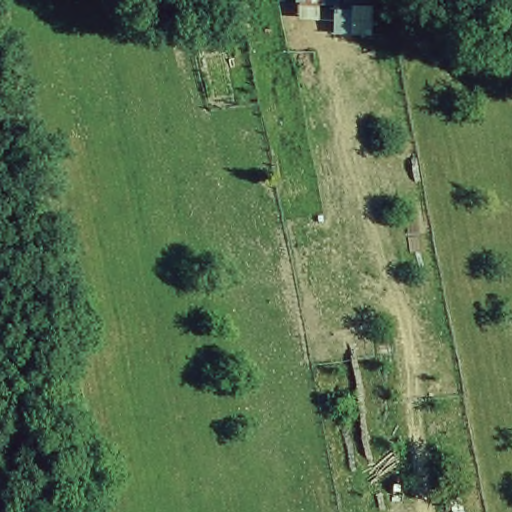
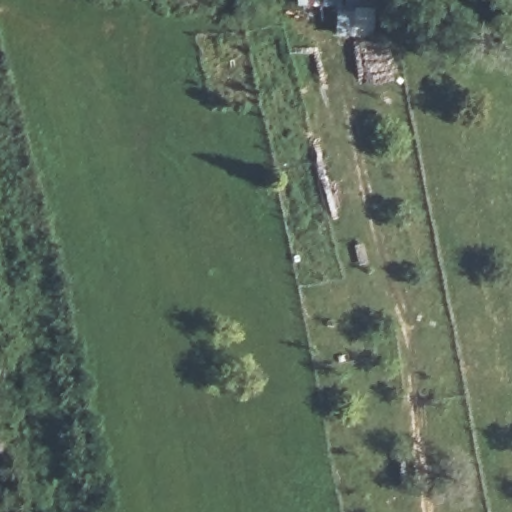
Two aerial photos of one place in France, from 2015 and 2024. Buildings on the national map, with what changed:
unchanged [(320,0),(380,0),(378,10),(319,11),(320,0)]

